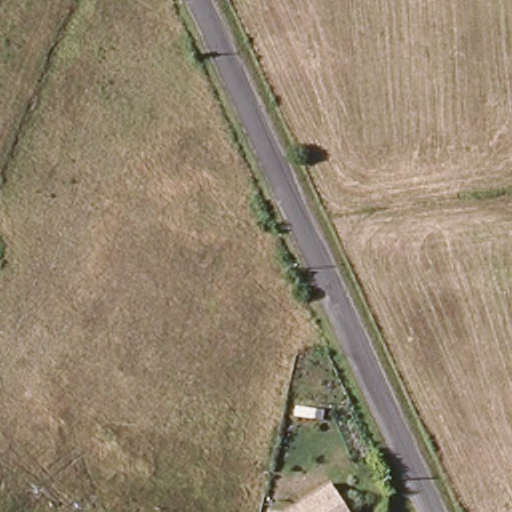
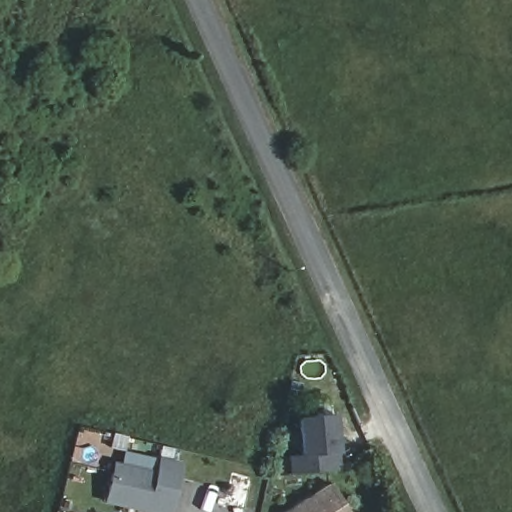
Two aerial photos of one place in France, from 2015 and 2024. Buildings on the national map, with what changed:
new [(288,474),(285,457),(299,455),(295,418),(334,413),(338,452),(338,468),(288,474)]
new [(145,512),(101,502),(110,462),(155,471),(158,457),(182,462),(171,512),(145,512)]
unchanged [(341,479),(356,512),(287,512),(289,505),(341,479)]

